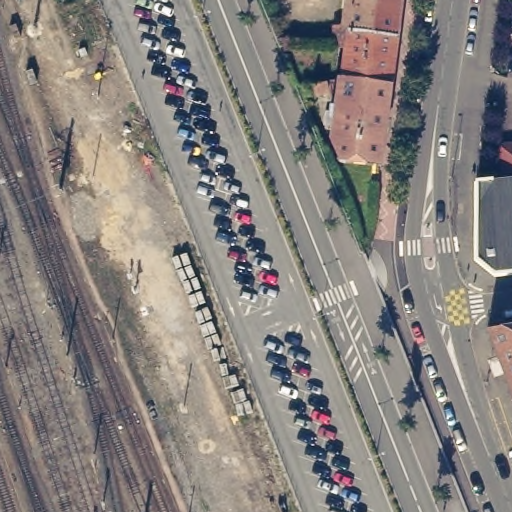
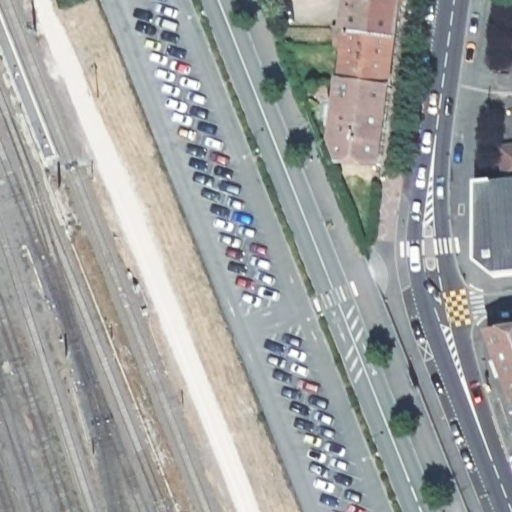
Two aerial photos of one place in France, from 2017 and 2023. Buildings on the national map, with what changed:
unchanged [(343,79),(347,48),(336,48),(336,47),(335,27),(342,27),(349,27),(352,0),(403,0),(398,38),(392,87),(343,79)]
unchanged [(341,162),(334,142),(337,121),(332,120),(333,114),(329,113),(330,105),(339,106),(343,79),(392,87),(381,164),(341,162)]
unchanged [(327,82),(329,92),(316,95),(313,85),(327,82)]
unchanged [(480,259),(480,184),(512,180),(512,274),(502,275),(480,259)]
unchanged [(512,326),(512,394),(488,330),(512,326)]

